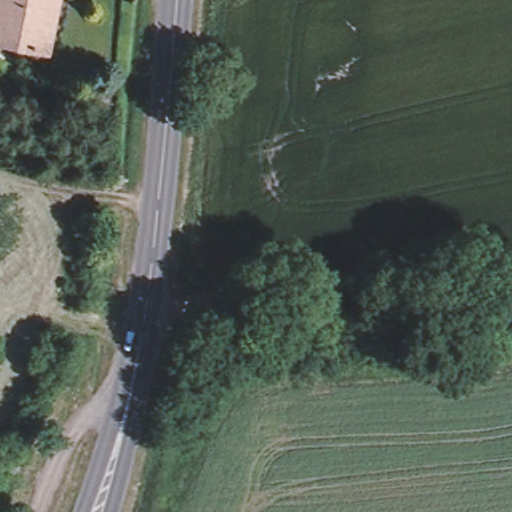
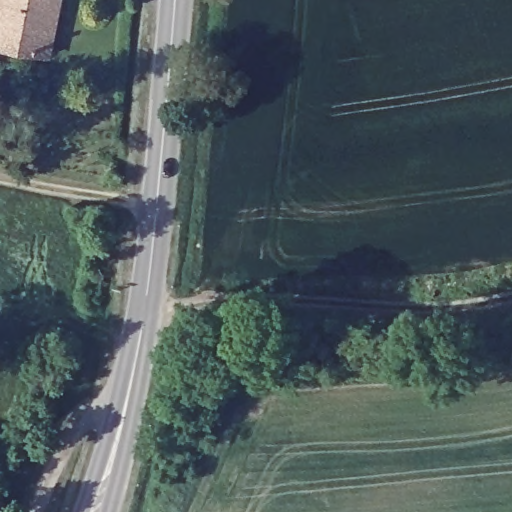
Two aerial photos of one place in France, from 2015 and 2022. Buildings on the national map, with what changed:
unchanged [(47,47),(2,38),(0,37),(0,0),(56,0),(47,47)]

